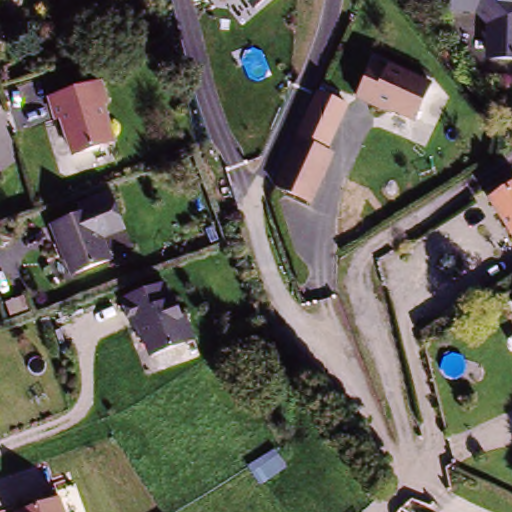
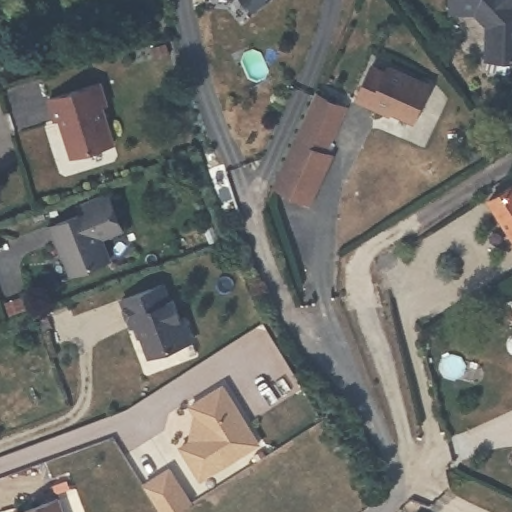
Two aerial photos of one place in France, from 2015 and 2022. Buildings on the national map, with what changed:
unchanged [(248,0),(265,0),(255,8),(248,0)]
unchanged [(487,51),(488,23),(476,10),(452,9),(452,0),(512,0),(512,58),(492,57),(487,51)]
unchanged [(387,69),(389,64),(430,82),(414,119),(391,109),(390,111),(357,97),(372,63),(387,69)]
unchanged [(97,77),(104,99),(100,100),(112,138),(70,153),(57,114),(52,116),(45,95),(97,77)]
unchanged [(329,151),(296,136),(317,91),(347,107),(329,151)]
unchanged [(296,136),(332,152),(311,200),(275,184),(296,136)]
unchanged [(512,237),(492,205),(512,193),(512,237)]
unchanged [(75,279),(62,244),(60,245),(54,230),(85,217),(82,210),(92,206),(92,205),(112,197),(119,215),(127,233),(105,242),(113,263),(75,279)]
unchanged [(162,276),(169,294),(171,293),(178,310),(180,309),(190,334),(150,350),(137,318),(131,321),(120,293),(162,276)]
new [(202,436),(205,423),(192,406),(224,384),(262,440),(207,479),(185,448),(202,436)]
demolished [(279,452),(290,478),(260,492),(247,467),(279,452)]
new [(170,468),(193,500),(173,512),(165,512),(145,484),(170,468)]
unchanged [(60,499),(65,512),(24,512),(60,499)]

